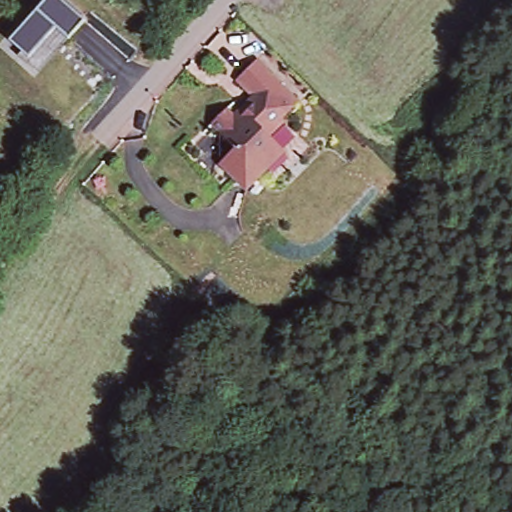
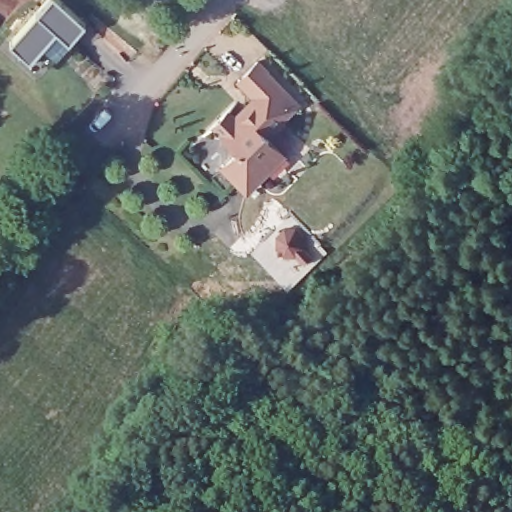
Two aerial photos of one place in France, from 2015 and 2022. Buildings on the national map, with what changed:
unchanged [(11,41),(47,0),(62,0),(85,20),(70,40),(57,28),(31,57),(11,41)]
unchanged [(222,141),(220,140),(210,130),(227,112),(233,117),(252,99),(236,84),(255,65),(273,83),(296,106),(280,122),(283,127),(268,142),(280,155),(243,192),(219,167),(236,150),(224,139),(222,141)]

